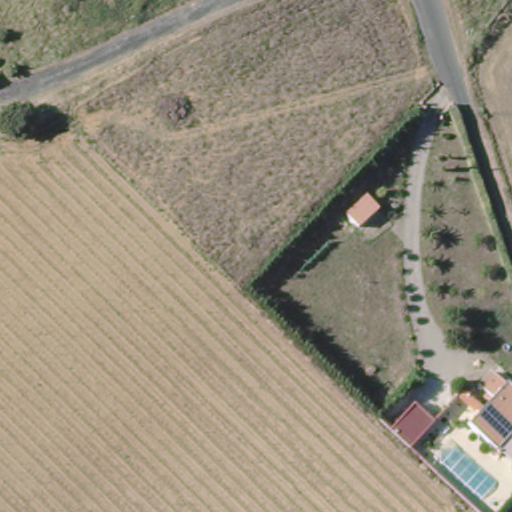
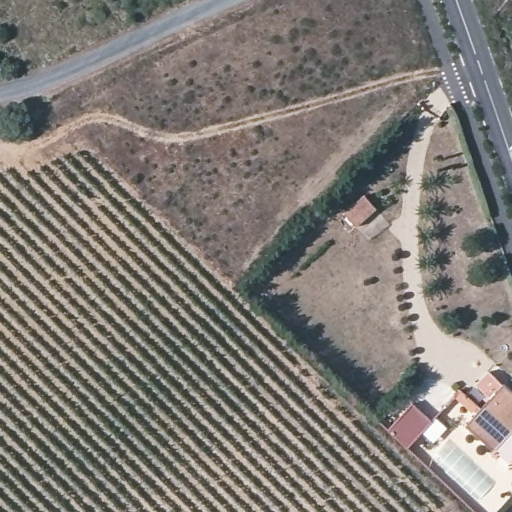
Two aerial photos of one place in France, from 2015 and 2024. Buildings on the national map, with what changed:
unchanged [(348,234),(337,221),(365,197),(376,211),(348,234)]
unchanged [(469,427),(494,401),(477,386),(489,373),(505,388),(512,394),(512,429),(494,450),(469,427)]
unchanged [(383,431),(406,407),(428,426),(402,450),(383,431)]

